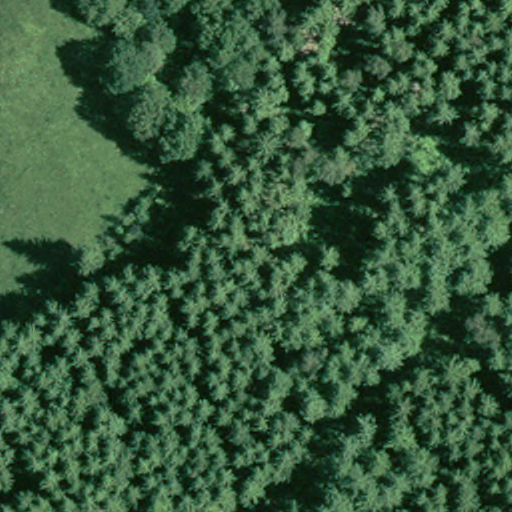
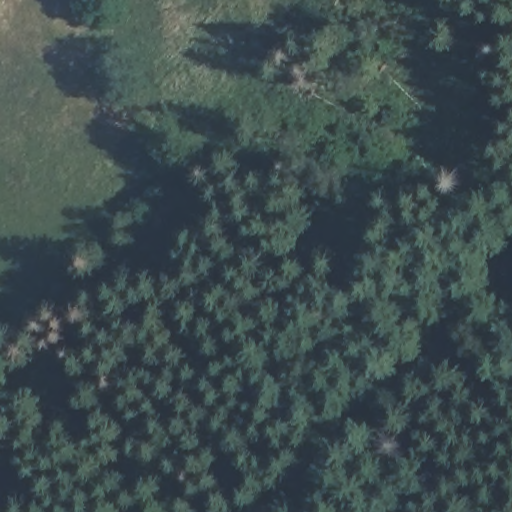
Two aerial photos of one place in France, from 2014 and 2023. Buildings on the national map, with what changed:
[]

